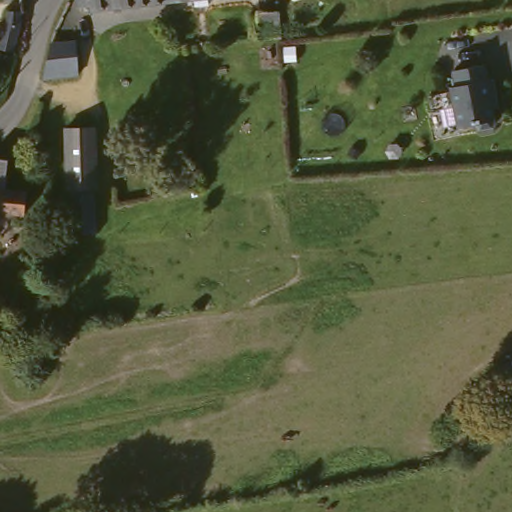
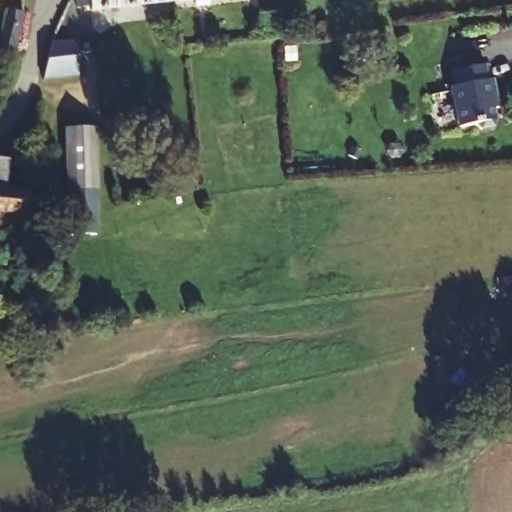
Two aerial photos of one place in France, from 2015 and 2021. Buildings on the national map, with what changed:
unchanged [(93,4),(79,6),(84,0),(176,0),(176,5),(95,17),(93,4)]
unchanged [(176,0),(214,0),(176,5),(176,0)]
unchanged [(4,44),(9,1),(28,2),(28,37),(27,45),(4,44)]
unchanged [(255,46),(253,36),(250,18),(270,15),(272,32),(273,43),(255,46)]
unchanged [(73,41),(76,62),(79,71),(53,76),(53,48),(53,44),(73,41)]
unchanged [(495,78),(502,105),(495,107),(498,119),(496,125),(484,129),(479,124),(463,129),(453,89),(458,88),(454,71),(485,64),(489,79),(495,78)]
unchanged [(97,186),(98,225),(72,225),(68,134),(99,133),(102,186),(97,186)]
unchanged [(13,184),(31,184),(30,215),(0,213),(0,153),(14,155),(13,184)]

